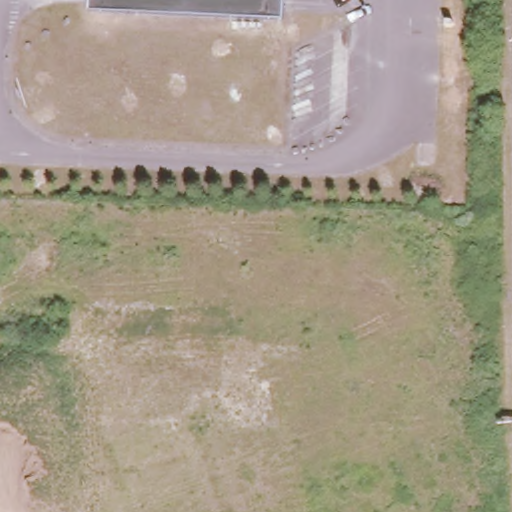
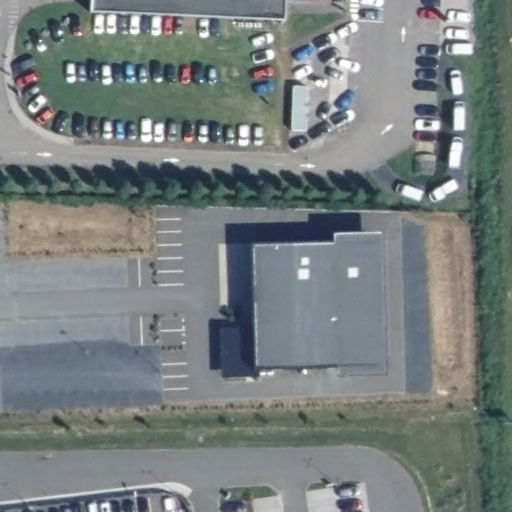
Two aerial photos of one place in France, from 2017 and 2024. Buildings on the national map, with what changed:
unchanged [(284,0),(283,21),(91,13),(91,0),(284,0)]
new [(376,237),(380,365),(255,368),(251,241),(376,237)]
new [(255,368),(261,368),(261,375),(224,376),(222,326),(254,325),(255,368)]

